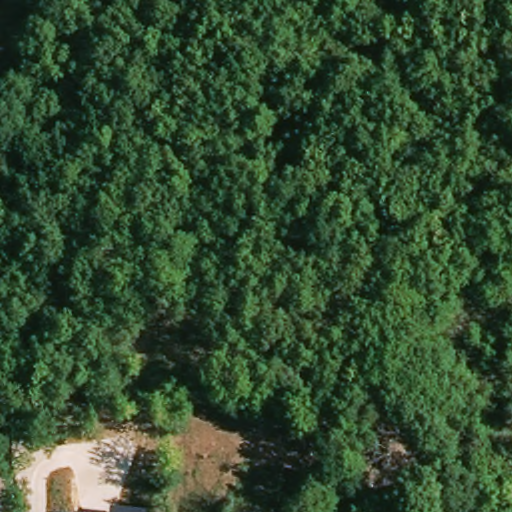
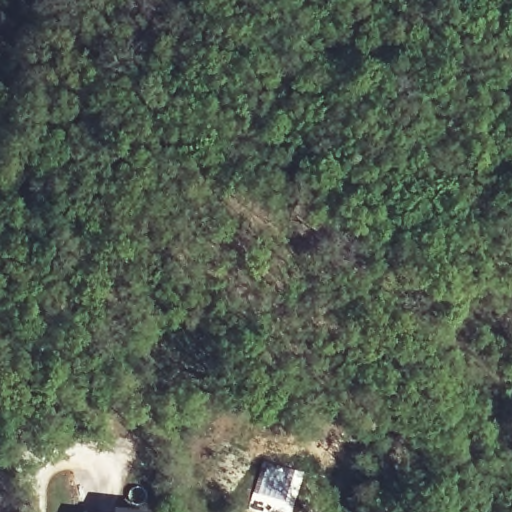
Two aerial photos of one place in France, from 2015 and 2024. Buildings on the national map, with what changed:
unchanged [(111,512),(111,510),(142,512),(111,512)]

